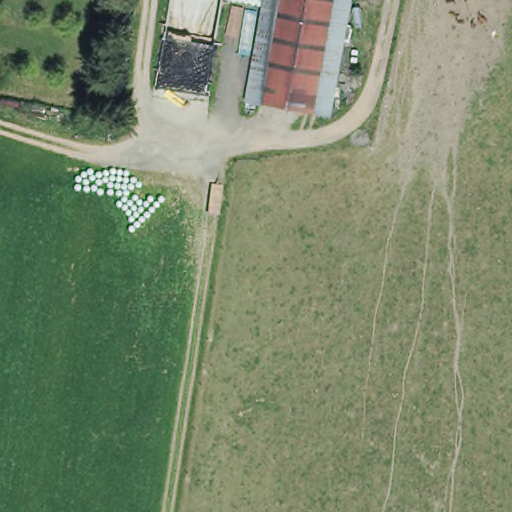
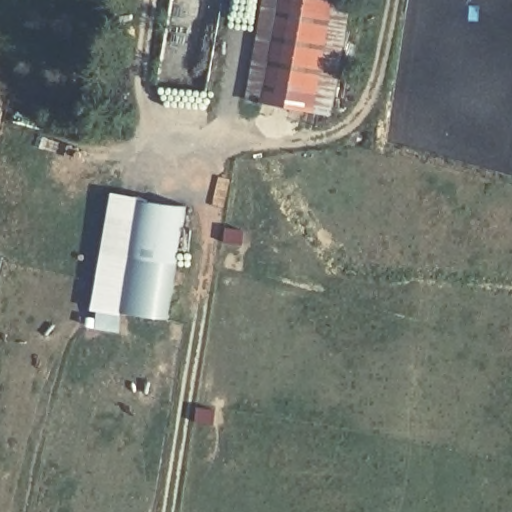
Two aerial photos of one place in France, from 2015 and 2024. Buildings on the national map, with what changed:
unchanged [(329,110),(245,96),(262,0),(348,0),(329,110)]
new [(170,318),(93,306),(113,192),(186,205),(170,318)]

